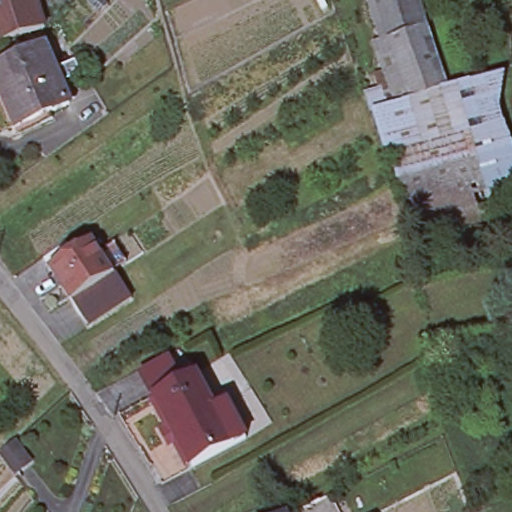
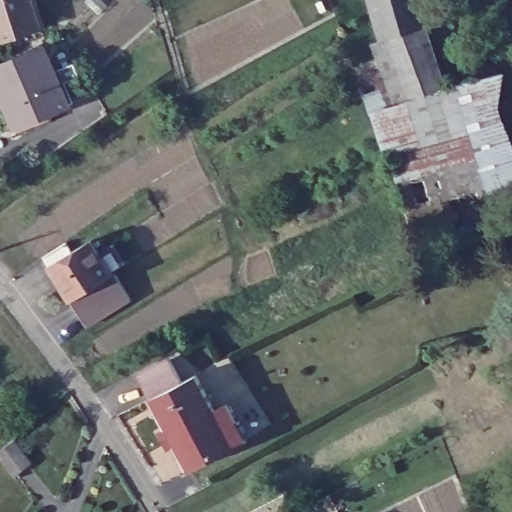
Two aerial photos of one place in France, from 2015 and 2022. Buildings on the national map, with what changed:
unchanged [(35,0),(38,8),(0,19),(0,0),(35,0)]
unchanged [(425,22),(435,52),(431,54),(447,88),(411,99),(388,34),(381,36),(371,0),(420,0),(426,21),(425,22)]
unchanged [(38,8),(44,27),(0,41),(0,19),(38,8)]
unchanged [(45,45),(69,104),(16,126),(0,88),(0,64),(45,45)]
unchanged [(447,88),(452,86),(503,73),(497,111),(512,147),(512,196),(490,206),(499,232),(420,257),(391,156),(386,158),(372,113),(411,99),(447,88)]
unchanged [(61,290),(47,269),(39,256),(82,229),(89,242),(103,264),(61,290)]
unchanged [(106,263),(122,288),(77,316),(61,290),(103,264),(106,263)]
unchanged [(237,445),(225,451),(181,474),(143,402),(131,379),(161,364),(173,386),(187,379),(206,414),(217,409),(237,445)]
unchanged [(14,441),(31,463),(17,474),(0,453),(14,441)]
unchanged [(287,511),(287,512),(285,512),(287,511)]

